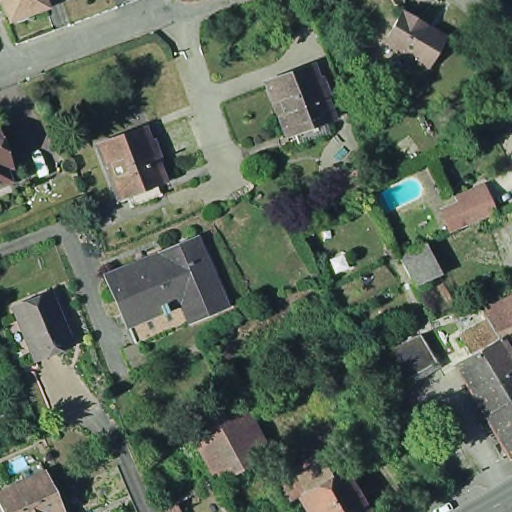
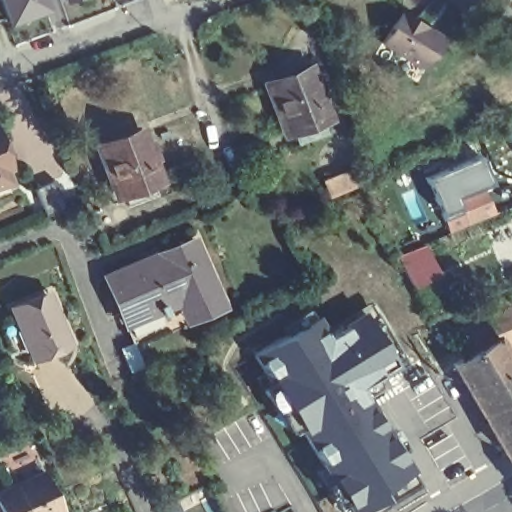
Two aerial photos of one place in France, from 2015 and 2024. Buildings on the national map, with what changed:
unchanged [(45,7),(26,13),(23,19),(15,22),(11,19),(7,20),(0,1),(0,0),(42,0),(45,7)]
unchanged [(442,36),(425,69),(381,46),(397,14),(442,36)]
unchanged [(301,144),(296,130),(291,132),(272,85),(314,69),(321,87),(327,85),(332,96),(326,99),(333,116),(326,119),(332,132),(301,144)]
unchanged [(509,126),(512,125),(512,133),(509,126)]
unchanged [(127,201),(122,188),(115,190),(97,142),(141,127),(147,144),(153,142),(158,154),(152,156),(158,174),(152,176),(157,190),(127,201)]
unchanged [(5,172),(10,182),(0,186),(0,146),(9,170),(5,172)]
unchanged [(456,199),(453,193),(480,181),(491,209),(490,210),(473,217),(465,220),(446,228),(437,206),(456,199)]
unchanged [(441,269),(417,282),(399,250),(415,243),(424,239),(441,269)]
unchanged [(188,321),(135,342),(108,276),(197,240),(218,292),(225,306),(188,321)]
unchanged [(468,350),(459,330),(472,323),(483,316),(477,304),(512,289),(512,350),(506,352),(512,362),(512,447),(511,448),(505,451),(497,436),(492,428),(478,404),(453,359),(468,350)]
unchanged [(5,327),(18,321),(13,310),(46,297),(50,296),(60,321),(70,344),(33,359),(32,357),(20,362),(5,327)]
new [(365,379),(422,479),(368,512),(357,512),(257,350),(292,330),(286,321),(313,306),(318,314),(322,311),(331,327),(368,306),(400,359),(365,379)]
demolished [(430,367),(381,395),(360,361),(413,338),(430,367)]
demolished [(265,457),(220,480),(201,444),(191,426),(236,403),(265,457)]
unchanged [(16,472),(37,462),(41,472),(59,511),(60,512),(0,512),(0,492),(20,482),(16,472)]
demolished [(294,507),(282,486),(326,462),(338,482),(304,501),(294,507)]
demolished [(338,482),(350,476),(371,512),(310,512),(304,501),(338,482)]
unchanged [(157,512),(171,504),(175,512),(157,512)]

